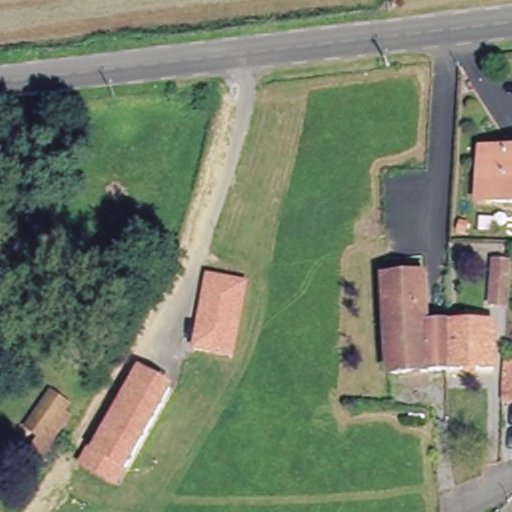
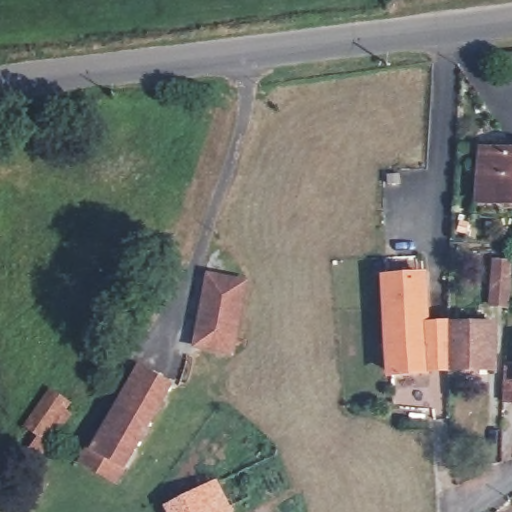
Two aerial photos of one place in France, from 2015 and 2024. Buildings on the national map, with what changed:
unchanged [(480,149),(512,149),(512,198),(479,198),(480,149)]
unchanged [(510,309),(490,308),(491,260),(511,261),(510,309)]
unchanged [(251,280),(235,357),(191,349),(207,271),(251,280)]
unchanged [(383,282),(419,280),(422,331),(440,330),(440,374),(387,376),(383,282)]
unchanged [(492,373),(440,374),(440,330),(491,331),(492,373)]
unchanged [(84,457),(93,442),(97,444),(134,380),(142,384),(155,360),(179,373),(127,462),(119,477),(84,457)]
unchanged [(45,469),(35,464),(50,438),(39,431),(59,397),(73,406),(70,412),(76,416),(45,469)]
unchanged [(29,473),(12,500),(0,491),(0,490),(17,465),(29,473)]
new [(216,480),(233,512),(165,512),(162,507),(216,480)]

